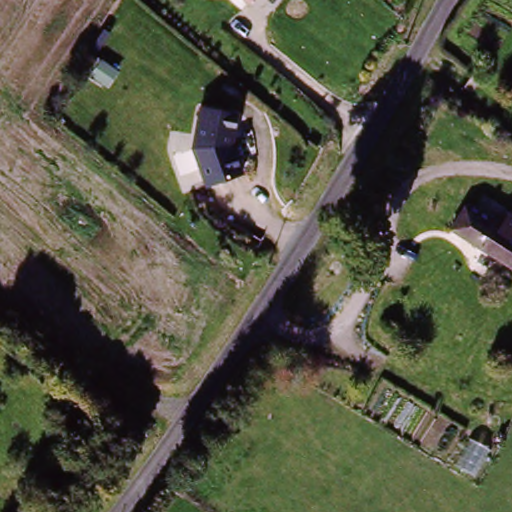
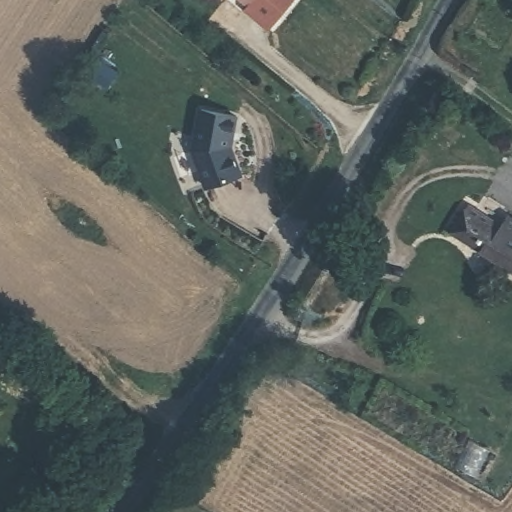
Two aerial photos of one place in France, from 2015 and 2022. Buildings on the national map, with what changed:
new [(254,0),(293,0),(270,29),(246,9),(252,2),(254,0)]
unchanged [(252,2),(249,0),(254,0),(252,2)]
unchanged [(189,106),(227,104),(227,134),(242,162),(209,181),(190,145),(189,106)]
unchanged [(450,237),(468,212),(502,237),(509,228),(512,230),(512,283),(450,237)]

